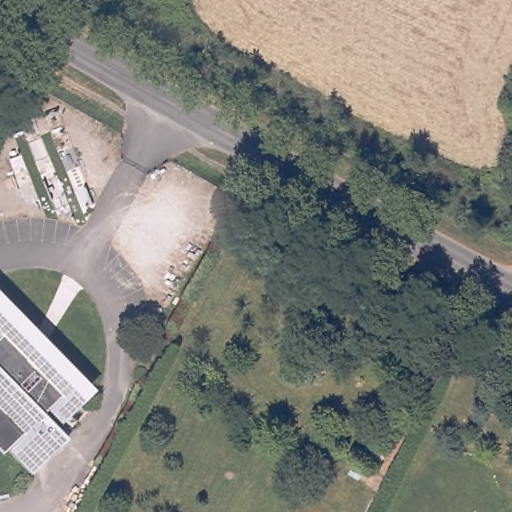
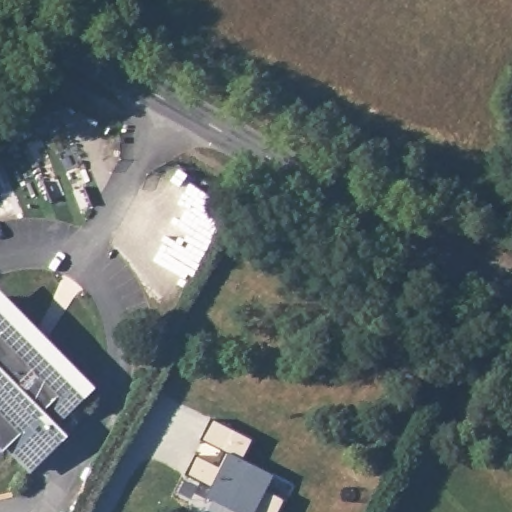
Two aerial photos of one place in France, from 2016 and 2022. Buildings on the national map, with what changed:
unchanged [(0,297),(76,376),(71,381),(81,392),(51,421),(61,432),(30,462),(7,439),(3,443),(0,440),(0,297)]
new [(222,469),(230,452),(202,439),(211,419),(251,439),(242,460),(272,474),(265,491),(284,500),(278,512),(238,512),(207,497),(211,487),(186,475),(196,457),(222,469)]

